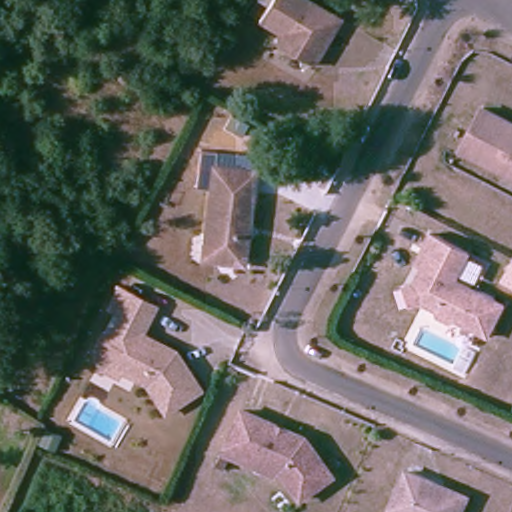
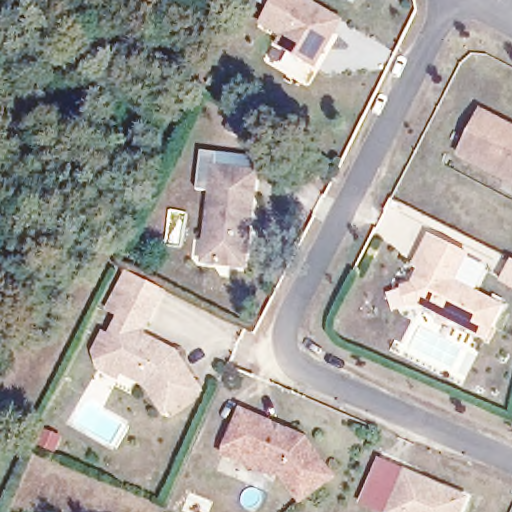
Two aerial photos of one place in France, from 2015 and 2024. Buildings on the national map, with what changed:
unchanged [(317,65),(281,46),(287,36),(265,24),(277,0),(306,0),(342,21),(317,65)]
unchanged [(485,113),(512,126),(512,179),(464,155),(485,113)]
unchanged [(247,265),(205,262),(214,168),(256,172),(250,225),(249,239),(247,265)]
unchanged [(408,291),(418,288),(417,287),(425,273),(419,269),(426,257),(434,239),(472,258),(458,285),(505,308),(489,340),(458,324),(452,326),(442,321),(440,315),(424,308),(424,307),(414,310),(408,291)]
unchanged [(104,350),(113,334),(118,337),(130,314),(125,311),(118,308),(128,288),(135,292),(162,306),(148,334),(156,338),(165,343),(179,350),(205,388),(169,410),(152,382),(128,370),(126,375),(109,367),(104,350)]
unchanged [(242,461),(227,454),(247,412),(282,428),(288,431),(309,441),(334,479),(302,501),(283,472),(278,469),(275,476),(242,461)]
unchanged [(461,512),(391,512),(406,475),(467,498),(461,512)]

